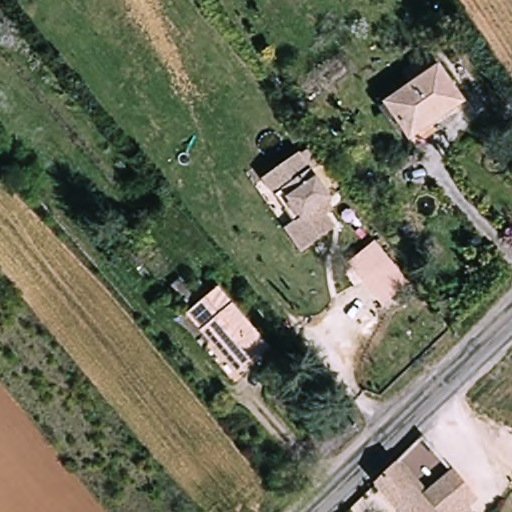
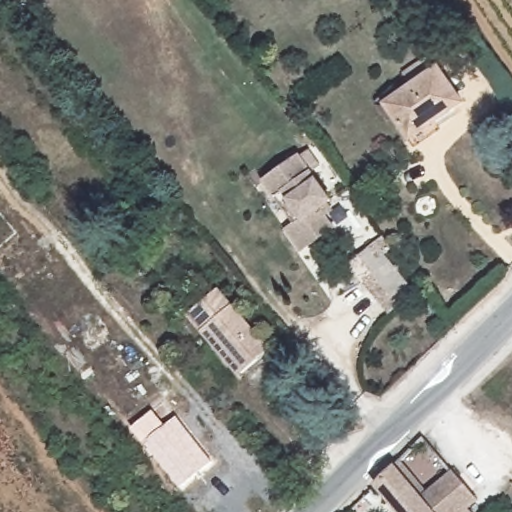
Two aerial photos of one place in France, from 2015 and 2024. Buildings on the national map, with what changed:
unchanged [(439,78),(460,109),(409,145),(387,114),(413,96),(405,82),(430,68),(436,80),(439,78)]
unchanged [(330,233),(298,256),(282,235),(297,225),(278,199),(272,203),(259,184),(293,159),(295,161),(303,154),(313,169),(305,175),(326,205),(324,207),(330,215),(321,221),(330,233)]
unchanged [(408,284),(381,306),(348,263),(374,243),(408,284)]
unchanged [(185,318),(214,292),(265,351),(240,374),(220,351),(215,354),(185,318)]
new [(132,427),(153,410),(166,426),(176,416),(209,461),(180,487),(132,427)]
unchanged [(430,512),(408,488),(435,461),(470,502),(460,512),(430,512)]
unchanged [(390,470),(408,488),(430,512),(392,512),(371,487),(390,470)]

